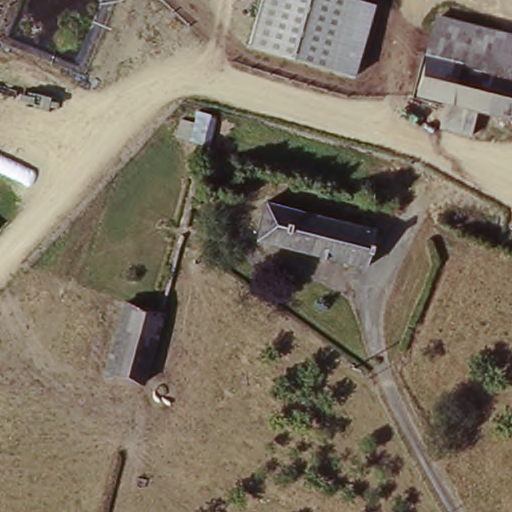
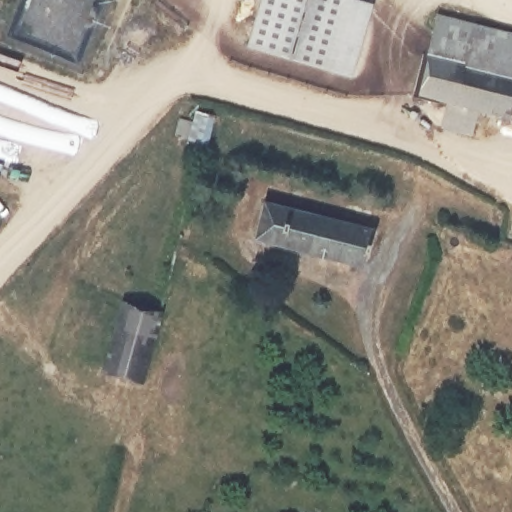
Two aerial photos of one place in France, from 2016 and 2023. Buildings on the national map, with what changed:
unchanged [(354,81),(245,45),(258,0),(362,0),(374,4),(354,81)]
unchanged [(476,141),(444,134),(448,106),(419,99),(405,96),(413,55),(430,60),(440,19),(499,33),(489,74),(512,80),(512,122),(482,114),(476,141)]
unchanged [(512,36),(512,80),(489,74),(499,33),(512,36)]
unchanged [(197,109),(200,94),(219,99),(215,114),(205,154),(188,149),(197,109)]
unchanged [(374,234),(365,272),(256,244),(266,207),(374,234)]
unchanged [(118,328),(123,308),(162,318),(157,341),(141,388),(105,378),(118,328)]

